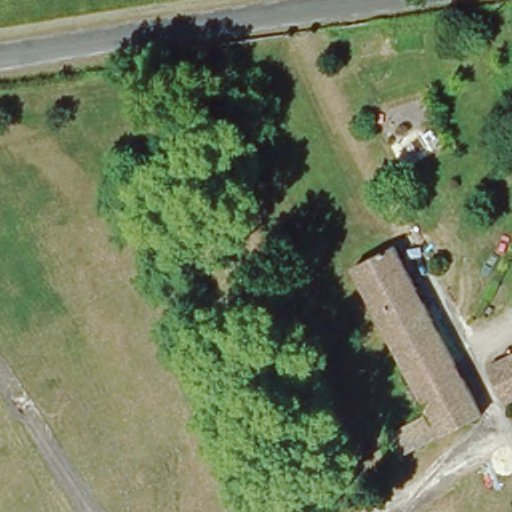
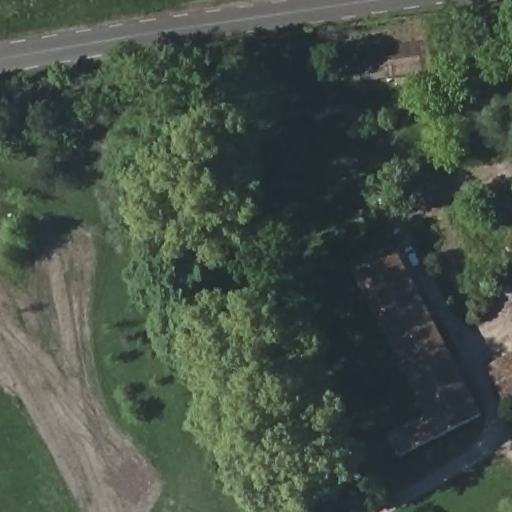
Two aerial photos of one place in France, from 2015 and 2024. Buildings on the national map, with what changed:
unchanged [(243,262),(233,241),(252,232),(261,253),(243,262)]
unchanged [(420,394),(359,265),(402,244),(480,418),(451,432),(401,456),(382,414),(420,394)]
unchanged [(492,356),(512,346),(512,393),(510,394),(492,356)]

